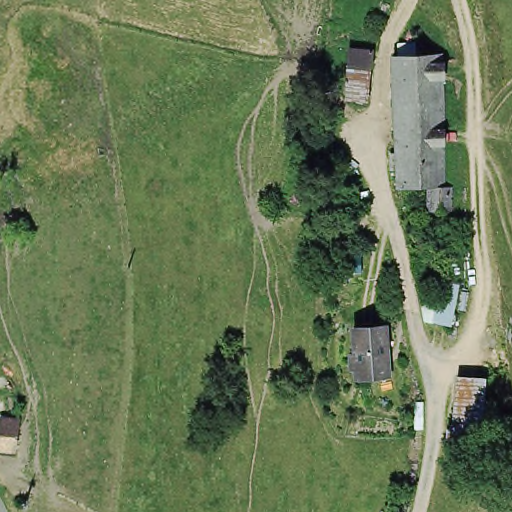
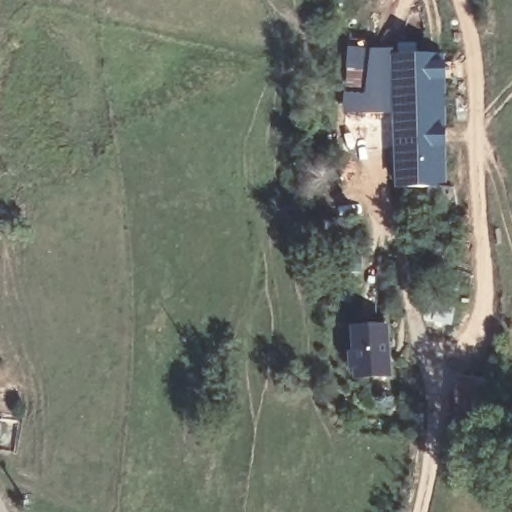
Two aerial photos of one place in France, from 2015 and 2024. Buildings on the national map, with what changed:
unchanged [(367,101),(345,97),(350,46),(371,49),(367,101)]
unchanged [(425,210),(427,186),(397,185),(395,61),(449,60),(449,187),(450,211),(425,210)]
unchanged [(464,278),(455,325),(435,322),(442,275),(464,278)]
unchanged [(390,322),(391,377),(347,376),(347,324),(390,322)]
unchanged [(484,379),(477,435),(447,431),(455,377),(484,379)]
unchanged [(25,450),(0,449),(0,416),(25,417),(25,450)]

